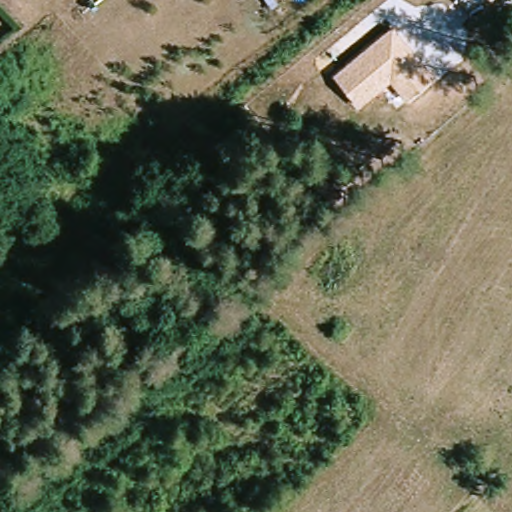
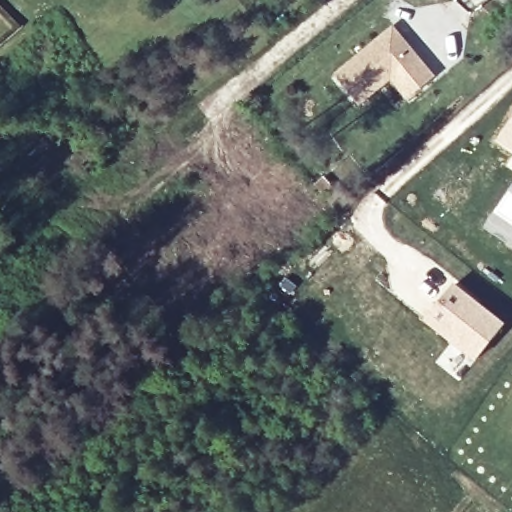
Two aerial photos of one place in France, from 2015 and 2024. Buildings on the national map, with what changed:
unchanged [(335,74),(394,24),(436,78),(408,99),(391,80),(361,105),(335,74)]
new [(512,125),(512,142),(504,136),(512,125)]
new [(454,283),(506,324),(474,363),(422,320),(454,283)]

